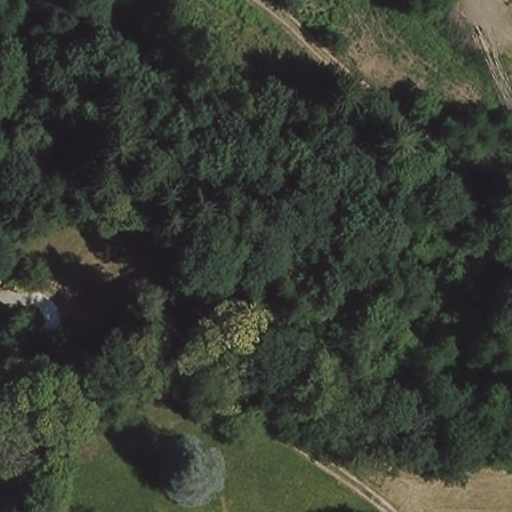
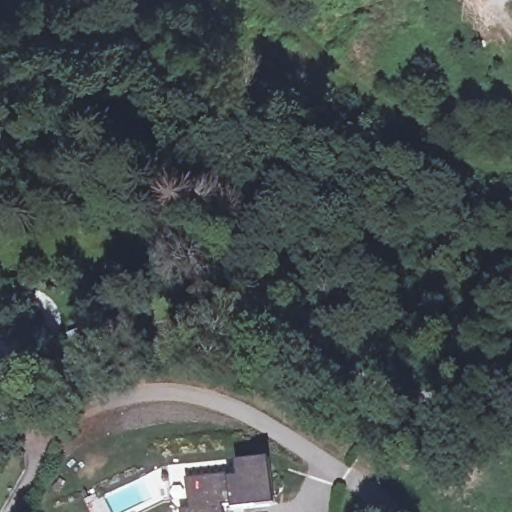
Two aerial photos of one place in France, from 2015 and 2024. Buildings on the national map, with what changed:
new [(224,512),(181,512),(181,510),(190,508),(187,480),(228,476),(228,478),(238,477),(237,463),(271,460),(276,505),(233,510),(233,503),(223,506),(224,512)]

